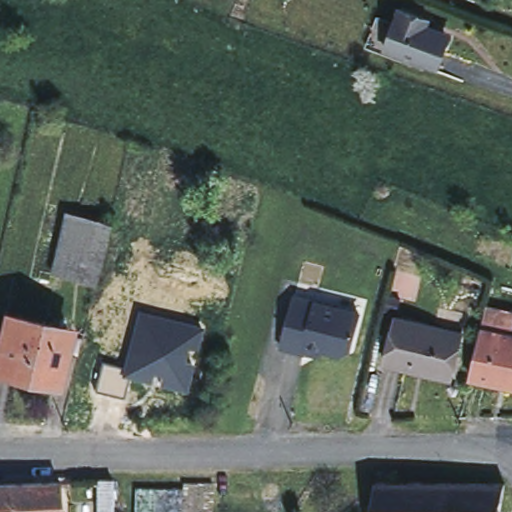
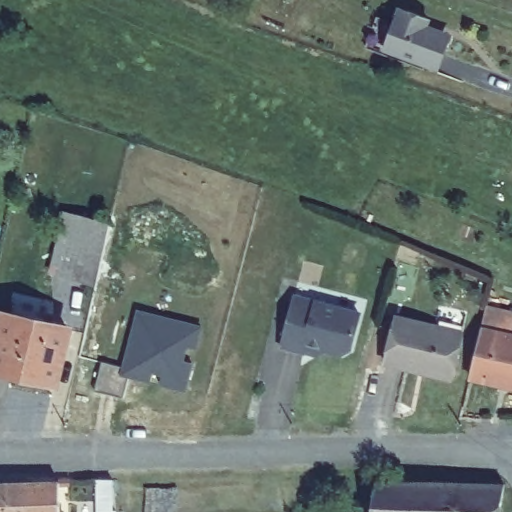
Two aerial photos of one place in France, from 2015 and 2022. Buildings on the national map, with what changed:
unchanged [(421,16),(429,20),(427,27),(445,35),(436,58),(432,67),(385,48),(388,40),(401,8),(421,16)]
unchanged [(108,224),(93,282),(51,272),(65,213),(108,224)]
unchanged [(303,353),(280,347),(293,297),(359,314),(349,349),(341,353),(321,348),(319,357),(303,353)]
unchanged [(198,346),(187,343),(184,359),(191,361),(184,388),(158,383),(161,372),(151,370),(149,380),(129,377),(123,395),(93,390),(103,359),(119,364),(135,304),(203,324),(198,346)]
unchanged [(486,307),(512,315),(512,336),(512,385),(469,376),(477,343),(480,330),(486,307)]
unchanged [(55,380),(0,368),(0,337),(5,314),(67,329),(55,380)]
unchanged [(416,370),(383,362),(396,316),(462,332),(452,373),(451,379),(416,370)]
unchanged [(113,480),(113,510),(98,510),(97,480),(113,480)]
unchanged [(60,512),(0,512),(0,483),(59,481),(60,512)]
unchanged [(504,490),(501,512),(371,512),(376,487),(504,490)]

